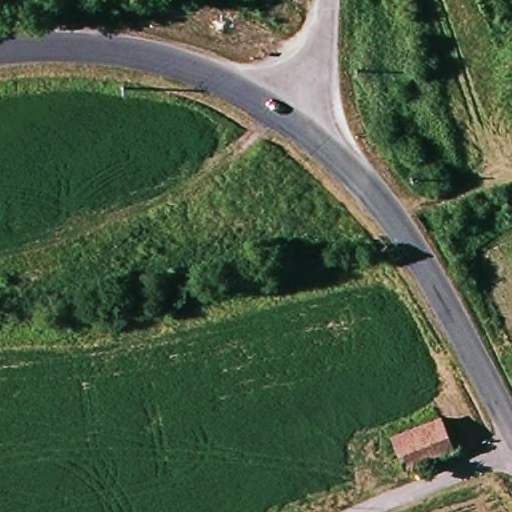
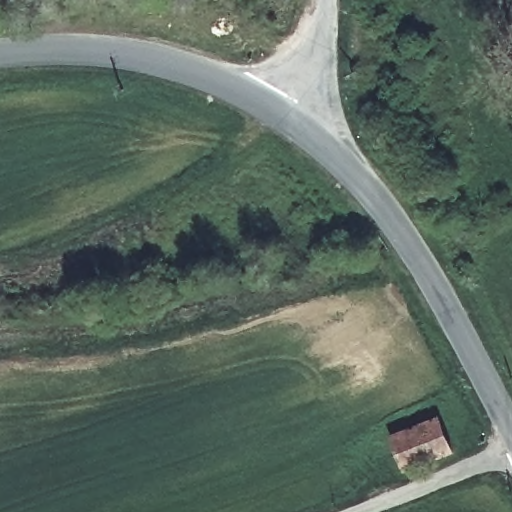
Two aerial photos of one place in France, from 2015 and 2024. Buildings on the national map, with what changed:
unchanged [(311,4),(299,1),(299,0),(311,0),(311,4)]
unchanged [(441,415),(452,446),(402,465),(391,433),(441,415)]

